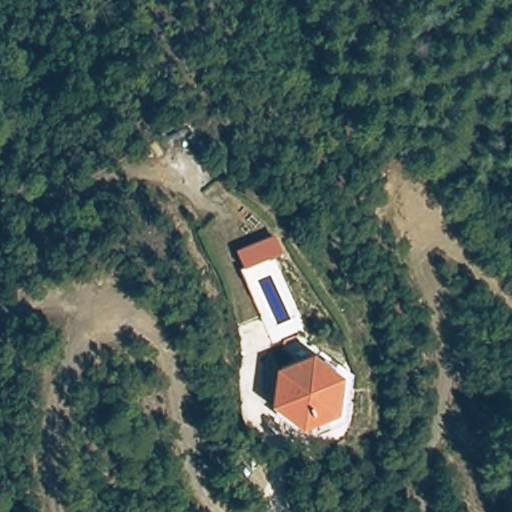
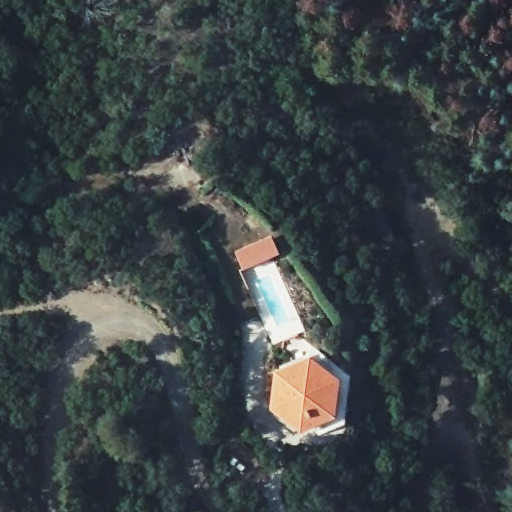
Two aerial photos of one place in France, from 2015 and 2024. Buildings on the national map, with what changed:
unchanged [(339,381),(335,415),(306,430),(275,409),(277,378),(310,362),(339,381)]

